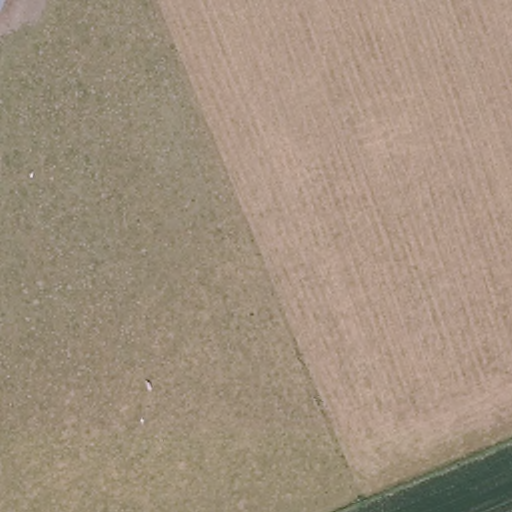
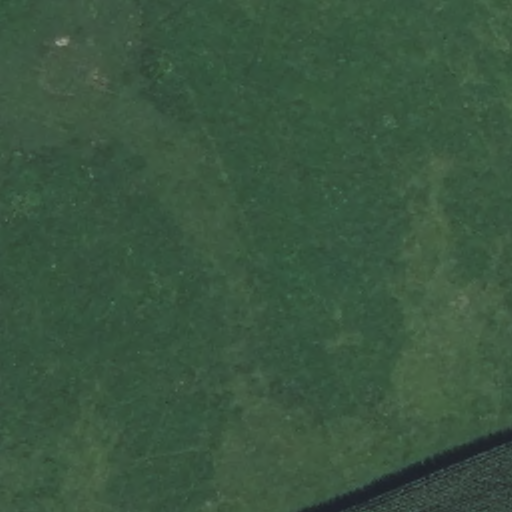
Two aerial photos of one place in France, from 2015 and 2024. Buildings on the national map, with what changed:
[]

